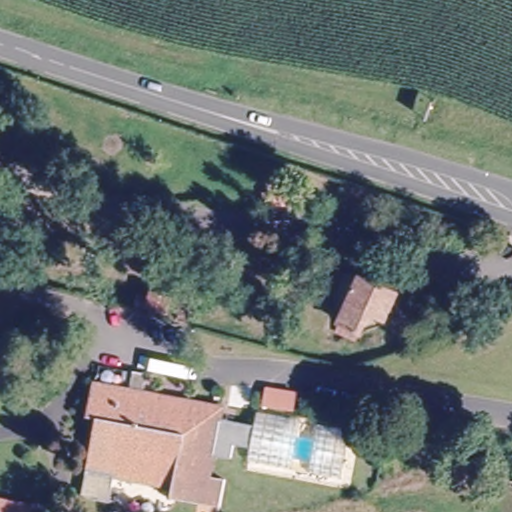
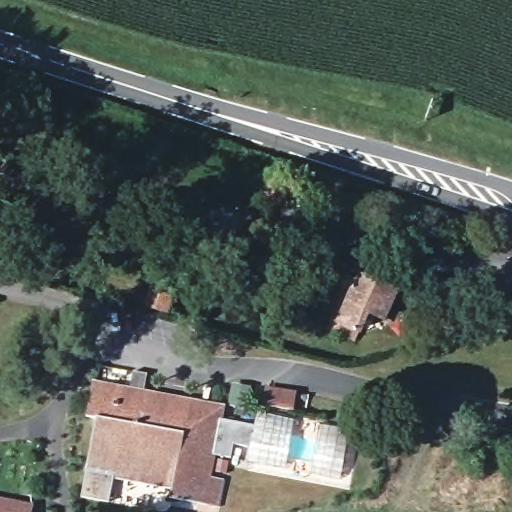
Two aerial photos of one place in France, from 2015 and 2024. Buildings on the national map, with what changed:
unchanged [(284,204),(266,205),(265,185),(282,184),(284,204)]
unchanged [(389,318),(372,311),(360,341),(341,332),(365,277),(400,293),(389,318)]
unchanged [(167,312),(147,306),(151,292),(172,297),(167,312)]
unchanged [(255,416),(251,437),(228,433),(226,447),(213,445),(209,467),(225,470),(219,497),(170,488),(172,477),(122,467),(115,466),(110,492),(82,487),(97,408),(87,407),(94,373),(130,381),(134,362),(147,365),(144,383),(162,387),(222,398),(222,403),(220,410),(255,416)]
unchanged [(292,411),(266,407),(268,388),(295,393),(292,411)]
unchanged [(0,512),(0,501),(34,508),(33,512),(0,512)]

